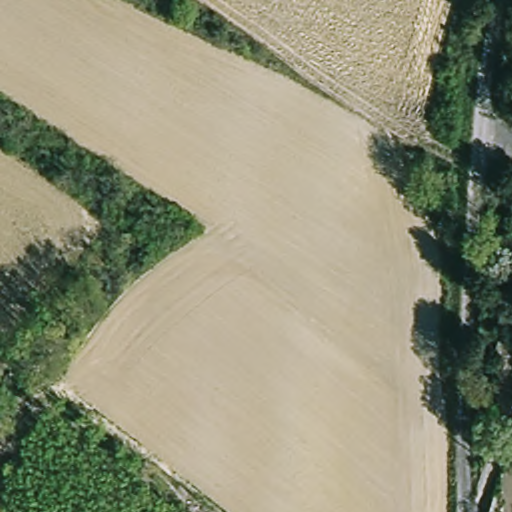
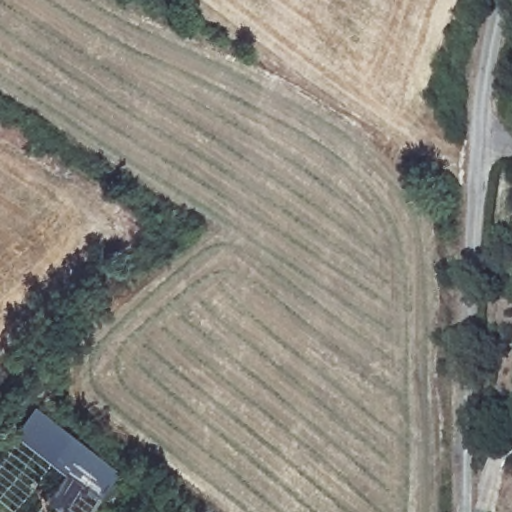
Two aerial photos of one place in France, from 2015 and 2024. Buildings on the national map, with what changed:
new [(100,498),(88,512),(17,512),(0,499),(0,447),(12,431),(33,404),(120,471),(100,498)]

